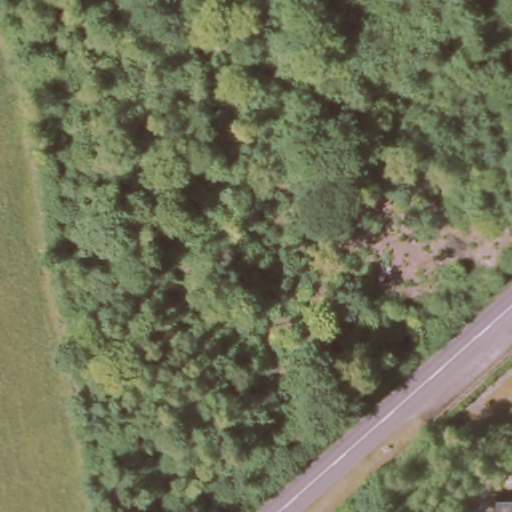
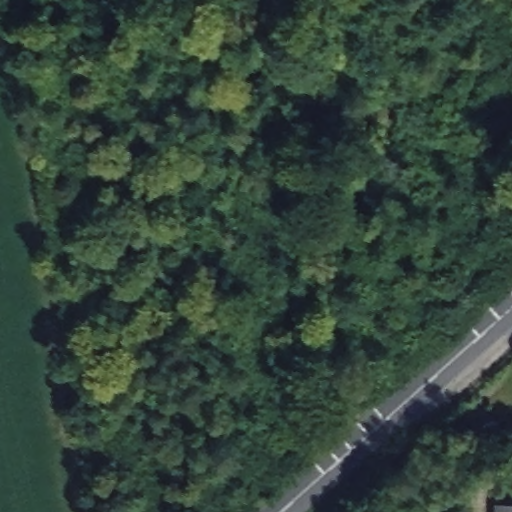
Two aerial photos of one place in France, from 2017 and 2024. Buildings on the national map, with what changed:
unchanged [(512,512),(495,512),(494,501),(512,500),(512,512)]

